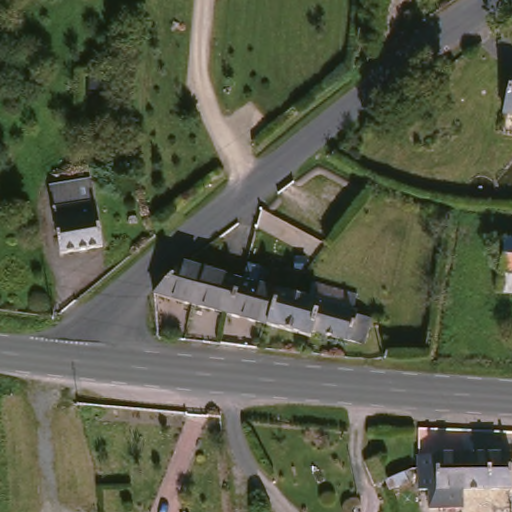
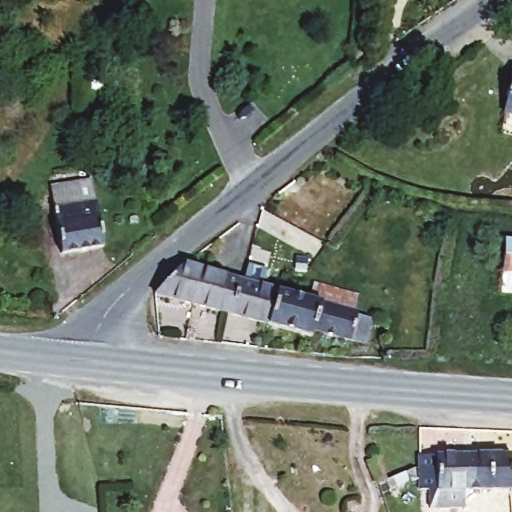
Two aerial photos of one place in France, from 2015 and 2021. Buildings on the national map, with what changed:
unchanged [(510,72),(512,72),(512,118),(503,117),(510,72)]
unchanged [(100,248),(56,254),(52,191),(95,185),(100,248)]
unchanged [(505,240),(512,240),(512,293),(500,292),(505,240)]
unchanged [(166,299),(155,315),(154,304),(156,295),(160,288),(184,267),(203,272),(192,306),(166,299)]
unchanged [(260,325),(225,315),(236,280),(239,281),(242,268),(277,276),(272,289),(260,325)]
unchanged [(225,315),(192,306),(203,272),(236,280),(225,315)]
unchanged [(296,296),(300,283),(346,295),(342,309),(373,317),(370,332),(366,343),(345,337),(343,342),(301,330),(300,335),(260,325),(272,289),(296,296)]
unchanged [(427,507),(428,491),(418,492),(419,461),(420,455),(470,454),(470,492),(470,506),(427,507)]
unchanged [(508,456),(509,493),(470,492),(470,454),(508,456)]

